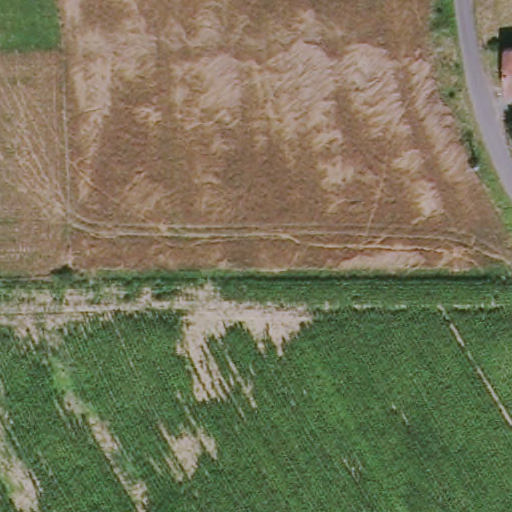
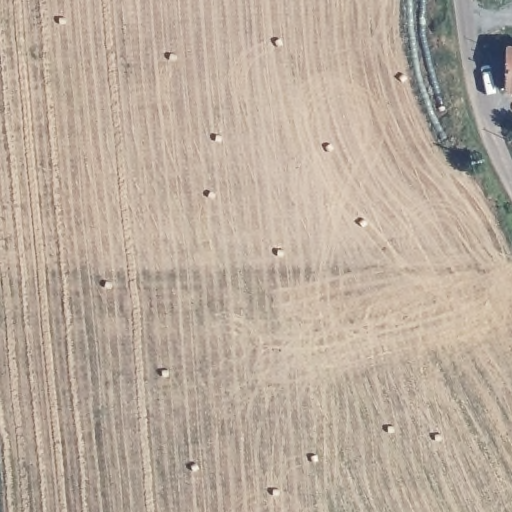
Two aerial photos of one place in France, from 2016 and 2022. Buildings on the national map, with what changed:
unchanged [(508,47),(512,47),(512,93),(508,93),(506,83),(508,47)]

